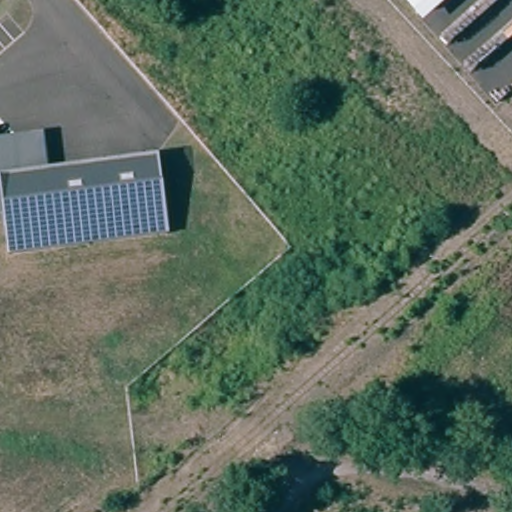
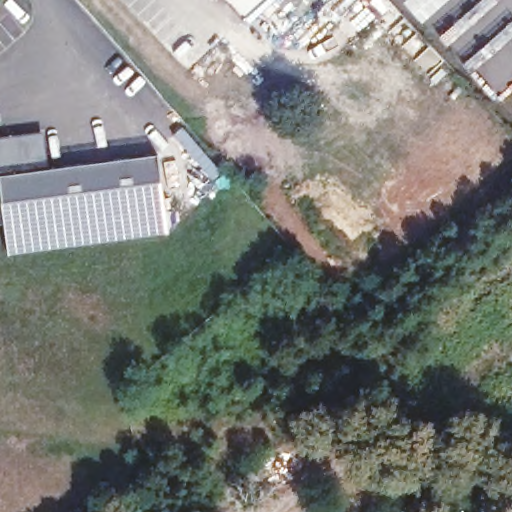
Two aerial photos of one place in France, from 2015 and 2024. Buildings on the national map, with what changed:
new [(243,18),(226,0),(262,0),(243,18)]
unchanged [(422,22),(402,0),(447,0),(422,22)]
unchanged [(5,222),(0,223),(0,135),(45,131),(49,168),(157,155),(165,232),(10,254),(5,222)]

